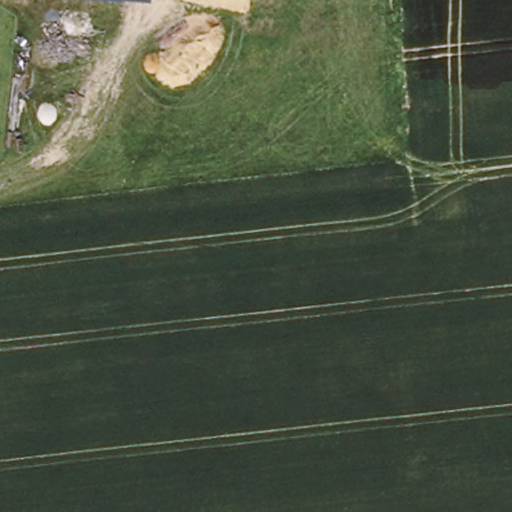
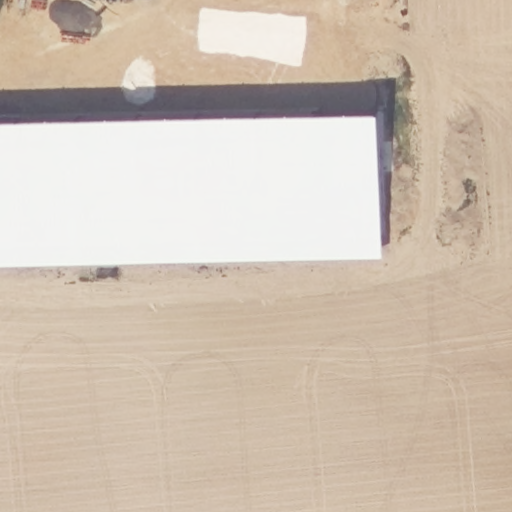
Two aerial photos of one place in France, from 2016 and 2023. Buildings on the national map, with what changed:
new [(379,106),(383,233),(0,244),(0,117),(379,106)]

